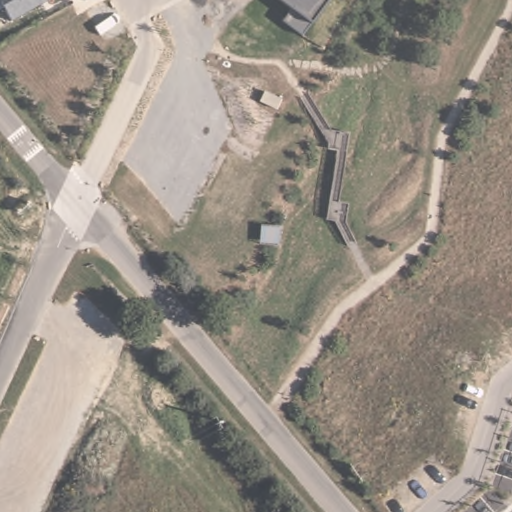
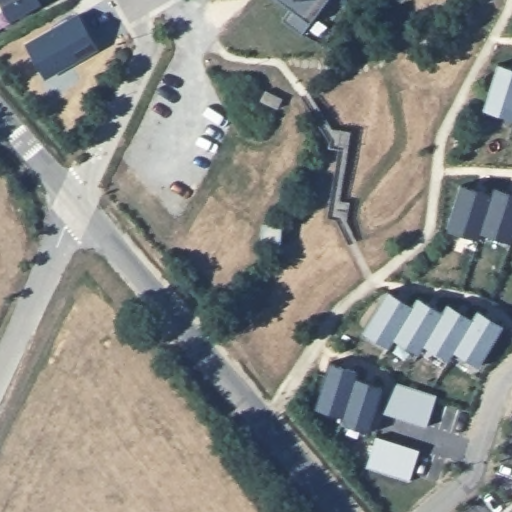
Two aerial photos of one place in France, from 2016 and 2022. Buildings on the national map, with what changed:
unchanged [(12,19),(1,0),(45,0),(41,3),(12,19)]
unchanged [(290,4),(283,0),(327,0),(312,20),(303,34),(282,19),(290,4)]
new [(80,14),(99,48),(46,79),(27,45),(80,14)]
new [(482,110),(498,64),(512,69),(512,120),(482,110)]
new [(512,244),(481,233),(478,240),(448,230),(463,184),(493,194),(496,185),(512,191),(512,242),(512,244)]
new [(478,366),(456,353),(451,362),(425,348),(421,355),(394,342),(389,349),(362,334),(387,292),(413,305),(417,299),(443,313),(448,306),(473,317),(477,310),(503,325),(478,366)]
new [(341,424),(343,416),(316,408),(328,364),(357,372),(356,378),(382,387),(368,433),(341,424)]
new [(383,413),(393,383),(436,396),(427,427),(383,413)]
new [(410,479),(366,467),(375,437),(420,449),(410,479)]

